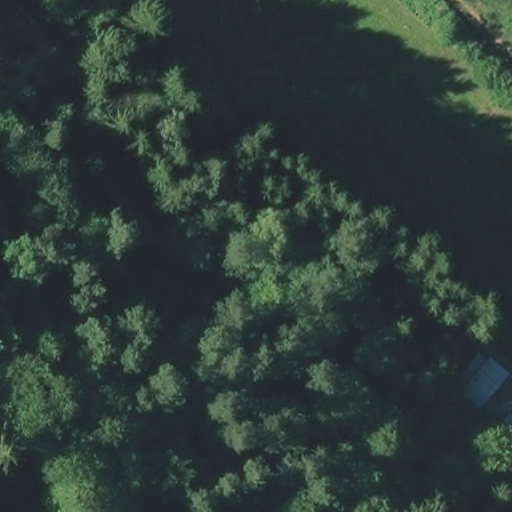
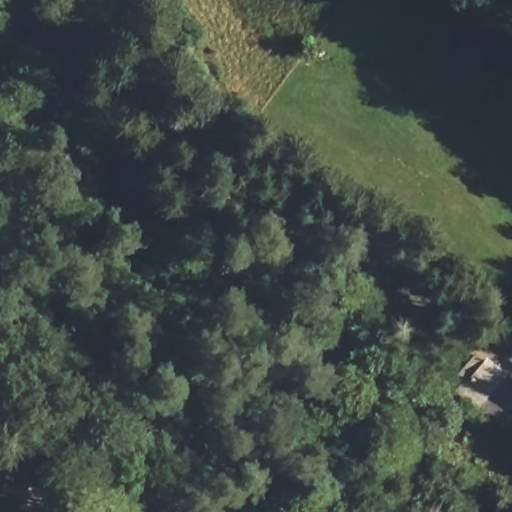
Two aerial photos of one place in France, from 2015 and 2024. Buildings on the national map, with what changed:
unchanged [(451,386),(487,346),(512,364),(512,365),(472,407),(451,386)]

